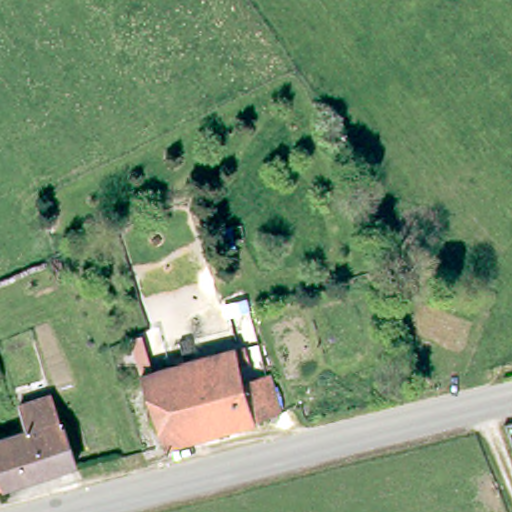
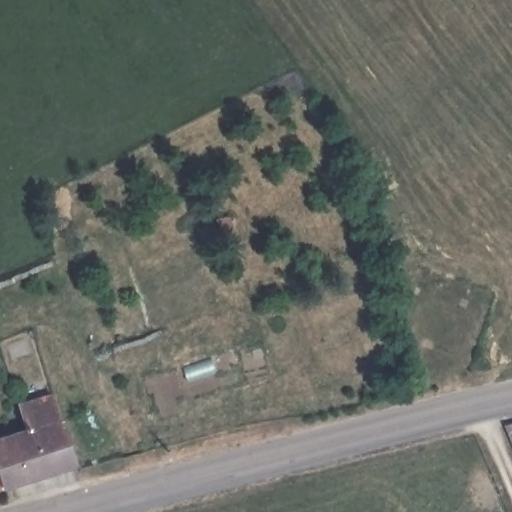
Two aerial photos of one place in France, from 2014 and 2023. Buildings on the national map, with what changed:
demolished [(237,355),(254,411),(165,440),(139,373),(232,338),(237,355)]
unchanged [(55,403),(62,428),(64,427),(77,465),(3,487),(0,479),(0,439),(25,432),(20,414),(55,403)]
unchanged [(0,479),(3,487),(0,488),(0,479)]

